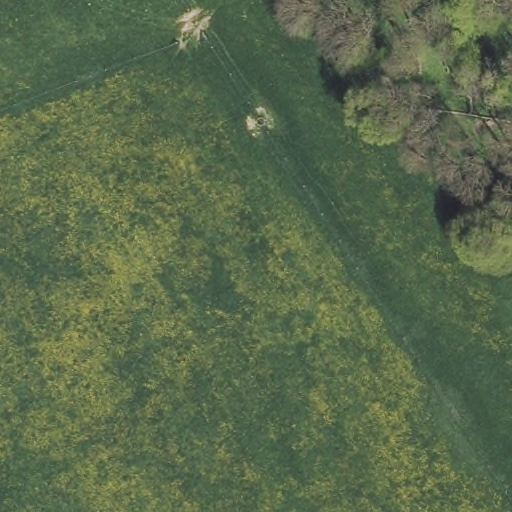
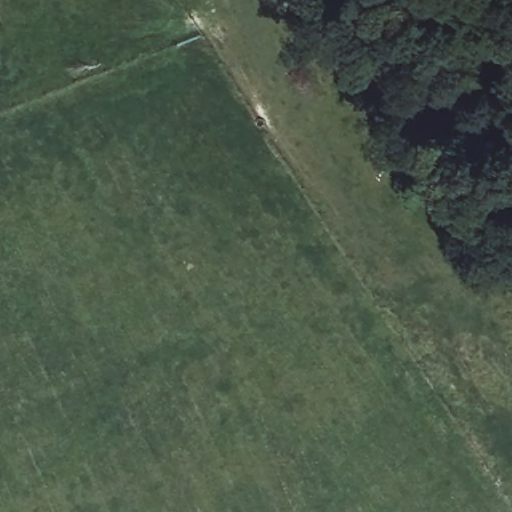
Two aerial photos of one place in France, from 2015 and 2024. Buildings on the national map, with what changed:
[]

